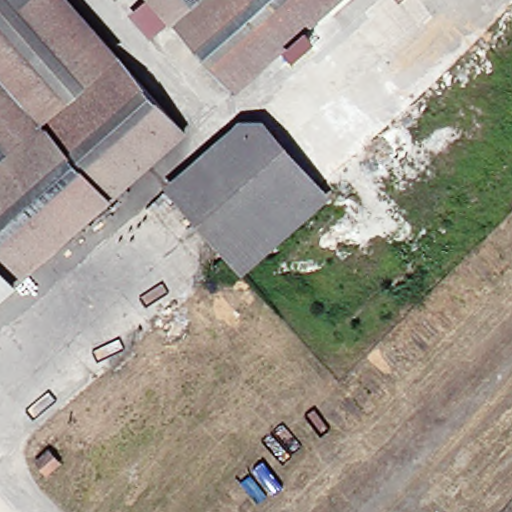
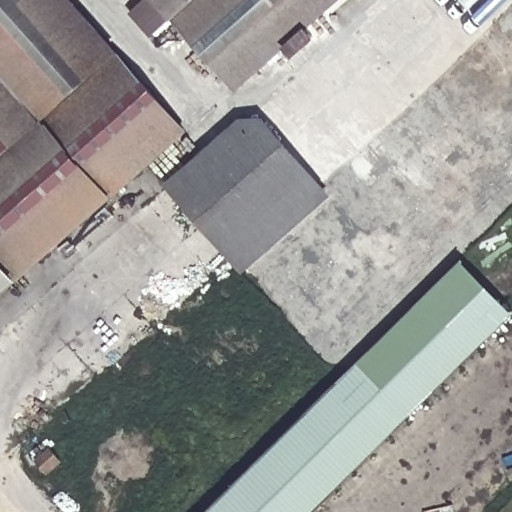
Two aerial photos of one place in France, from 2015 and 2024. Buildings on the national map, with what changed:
unchanged [(66,0),(185,134),(117,194),(0,296),(0,0),(66,0)]
unchanged [(111,0),(114,0),(112,2),(111,0)]
unchanged [(152,0),(172,23),(150,46),(125,17),(143,0),(152,0)]
unchanged [(172,23),(152,0),(342,0),(236,94),(172,23)]
demolished [(344,96),(323,72),(402,3),(422,27),(344,96)]
demolished [(298,131),(271,102),(279,95),(305,124),(298,131)]
unchanged [(244,279),(165,189),(250,114),(330,202),(244,279)]
new [(512,312),(512,317),(317,512),(209,512),(460,260),(512,312)]
unchanged [(38,463),(50,453),(60,465),(48,474),(38,463)]

